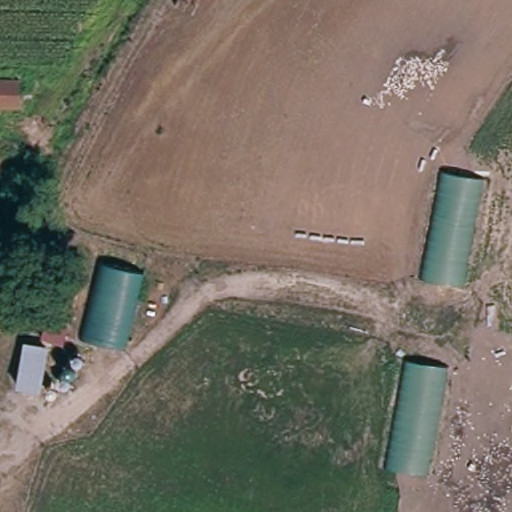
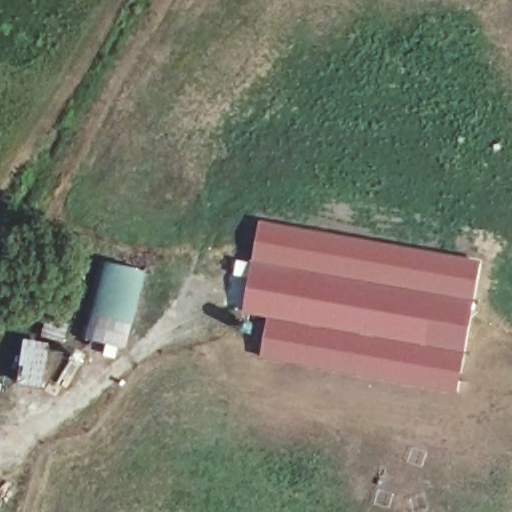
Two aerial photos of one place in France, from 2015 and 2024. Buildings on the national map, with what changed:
demolished [(454,290),(414,284),(431,176),(473,184),(454,290)]
new [(260,356),(269,316),(243,311),(260,220),(483,259),(459,391),(260,356)]
unchanged [(136,269),(119,347),(74,336),(91,258),(136,269)]
unchanged [(11,394),(19,345),(50,349),(43,395),(11,394)]
demolished [(419,479),(379,471),(403,362),(444,374),(419,479)]

